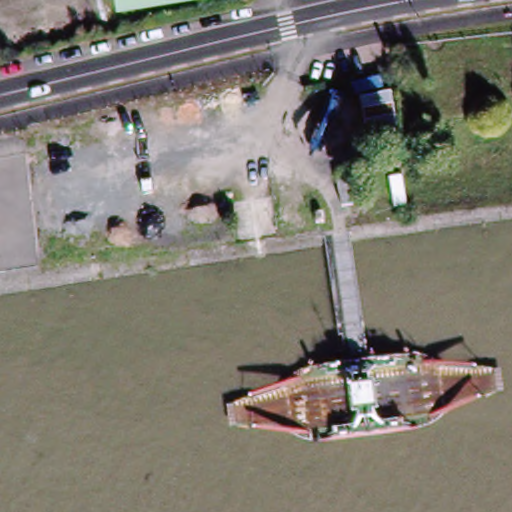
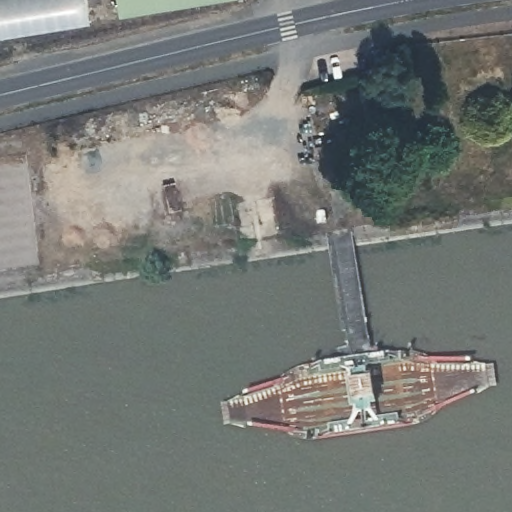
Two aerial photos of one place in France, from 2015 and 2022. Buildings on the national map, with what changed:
new [(0,38),(0,0),(86,0),(90,24),(0,38)]
unchanged [(122,15),(119,0),(231,0),(122,15)]
unchanged [(375,127),(365,130),(356,80),(366,78),(375,127)]

